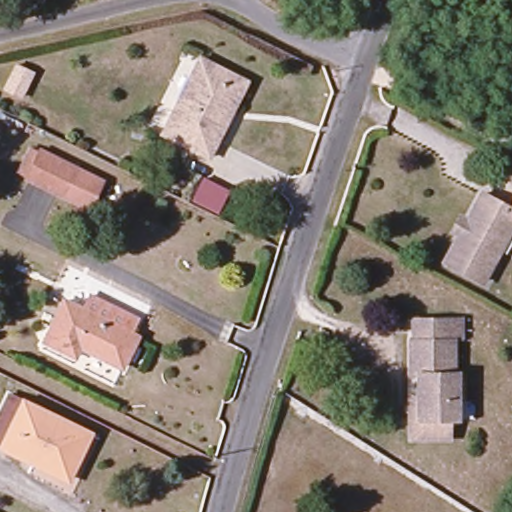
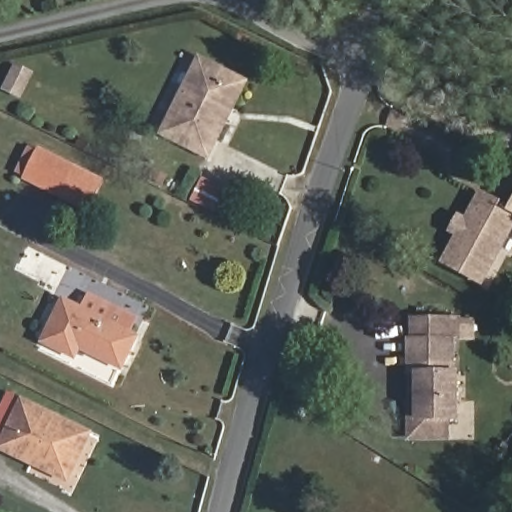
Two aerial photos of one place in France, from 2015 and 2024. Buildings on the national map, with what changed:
unchanged [(161,134),(191,68),(195,60),(245,84),(227,122),(211,158),(161,134)]
unchanged [(67,199),(66,202),(31,184),(19,177),(20,174),(31,149),(45,155),(79,173),(67,199)]
unchanged [(476,205),(484,191),(512,206),(512,226),(485,278),(446,258),(476,205)]
unchanged [(65,308),(135,342),(121,369),(80,349),(75,359),(47,347),(65,308)]
unchanged [(420,369),(412,369),(411,338),(414,338),(414,315),(424,315),(451,314),(465,314),(465,338),(457,338),(460,416),(452,416),(453,429),(411,431),(410,409),(410,392),(421,391),(420,369)]
unchanged [(84,436),(62,478),(0,449),(0,433),(15,403),(84,436)]

